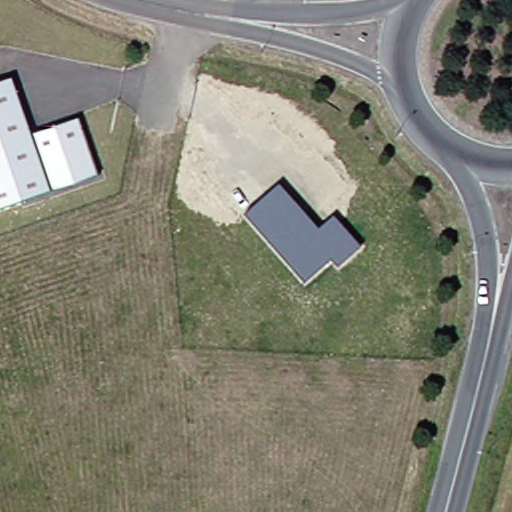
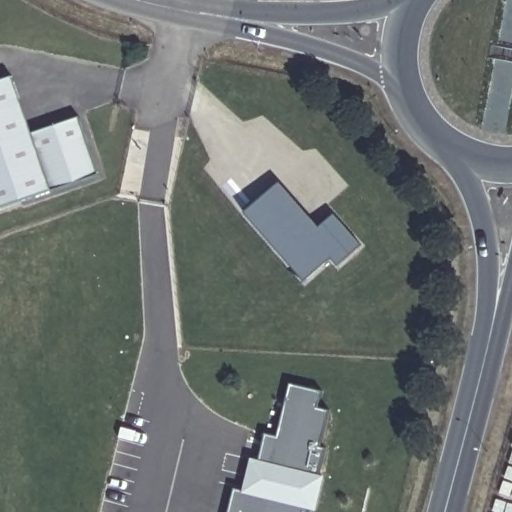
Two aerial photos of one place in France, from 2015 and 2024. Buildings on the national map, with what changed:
unchanged [(9,80),(32,135),(54,189),(0,211),(0,83),(9,80)]
unchanged [(32,135),(78,116),(100,170),(54,189),(32,135)]
unchanged [(280,184),(321,227),(336,214),(365,245),(340,267),(333,261),(307,284),(244,217),(280,184)]
new [(246,497),(254,466),(269,470),(276,440),(283,442),(292,406),(285,403),(289,384),(321,392),(316,407),(329,411),(320,447),(325,448),(317,478),(320,478),(312,510),(310,508),(309,512),(229,512),(234,493),(246,497)]

